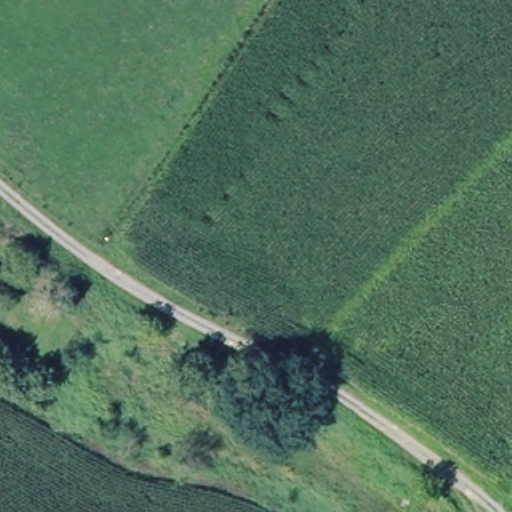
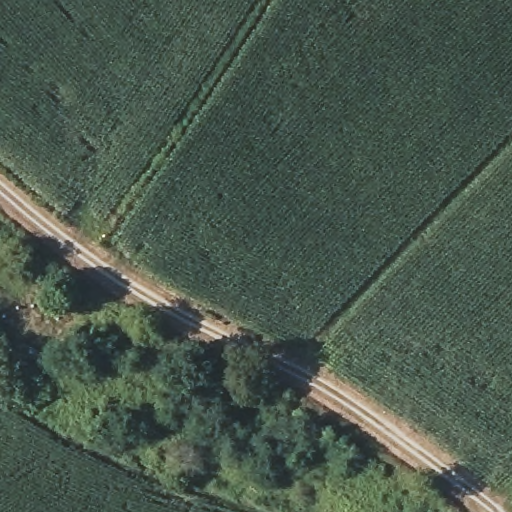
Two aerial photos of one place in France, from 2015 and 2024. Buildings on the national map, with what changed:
unchanged [(245,367),(234,384),(218,381),(208,371),(219,353),(245,367)]

